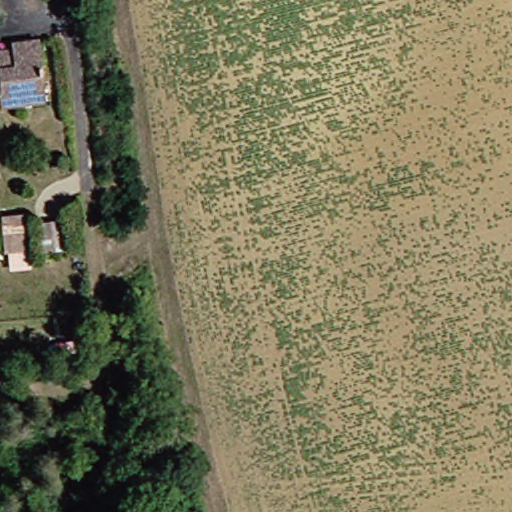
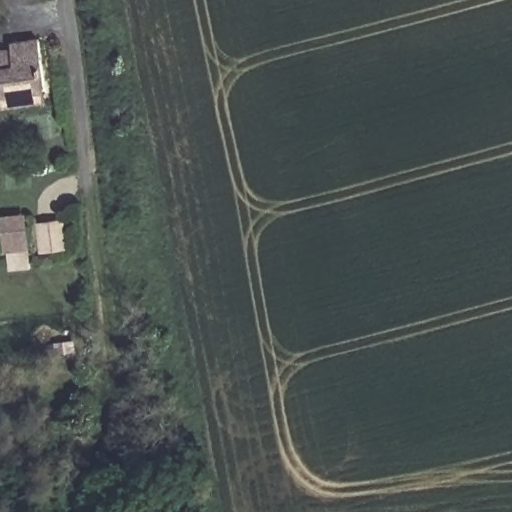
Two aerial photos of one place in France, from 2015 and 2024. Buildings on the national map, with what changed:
unchanged [(12,45),(44,42),(48,86),(50,105),(12,110),(11,90),(0,91),(0,57),(13,56),(12,45)]
unchanged [(57,253),(55,235),(53,224),(80,221),(81,232),(83,249),(57,253)]
unchanged [(21,252),(19,238),(19,232),(41,229),(43,237),(44,249),(21,252)]

